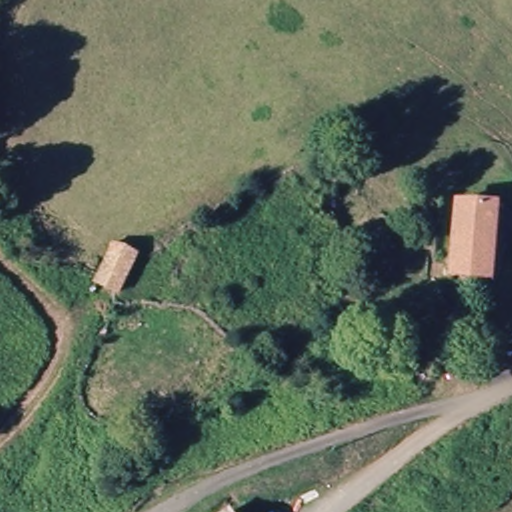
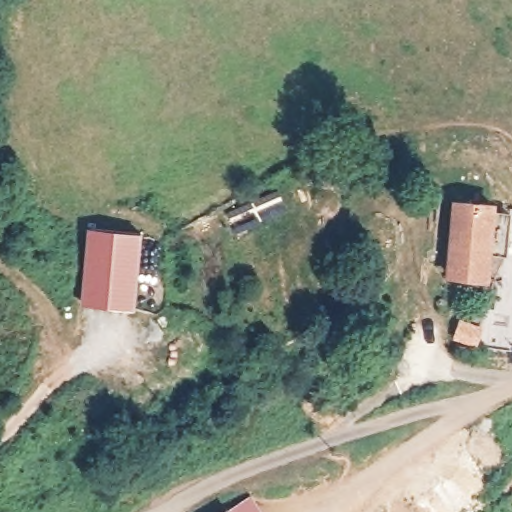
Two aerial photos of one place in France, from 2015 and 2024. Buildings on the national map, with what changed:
unchanged [(450,277),(450,270),(456,203),(492,205),(486,273),(485,280),(450,277)]
new [(88,229),(143,234),(137,310),(81,305),(88,229)]
demolished [(125,302),(100,291),(102,286),(117,253),(142,263),(125,302)]
unchanged [(456,340),(460,325),(475,329),(483,330),(478,346),(471,345),(456,340)]
new [(251,495),(262,512),(222,512),(227,509),(251,495)]

